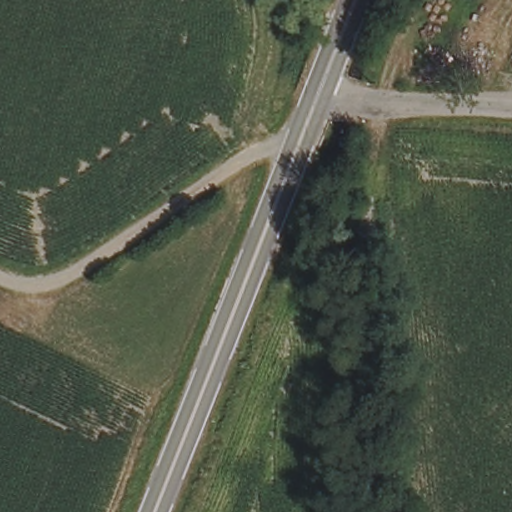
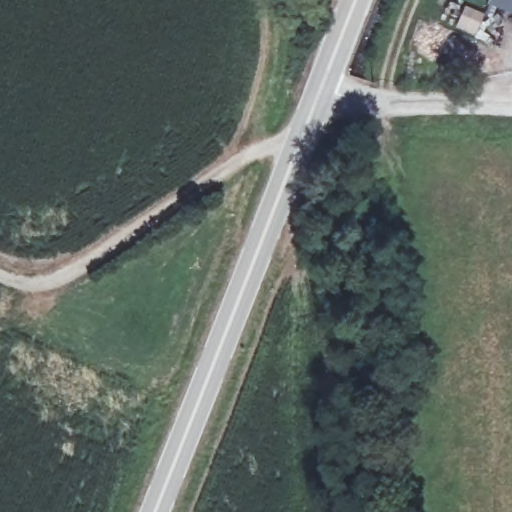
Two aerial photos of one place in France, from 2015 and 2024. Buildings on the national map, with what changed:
unchanged [(305,0),(319,0),(314,14),(307,10),(302,6),(305,1),(305,0)]
new [(487,2),(488,0),(512,0),(512,12),(487,2)]

